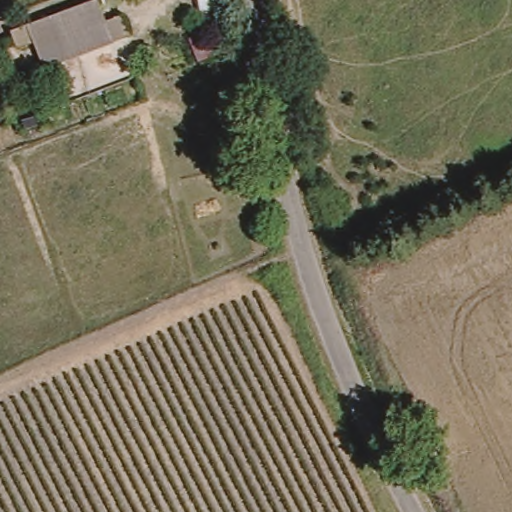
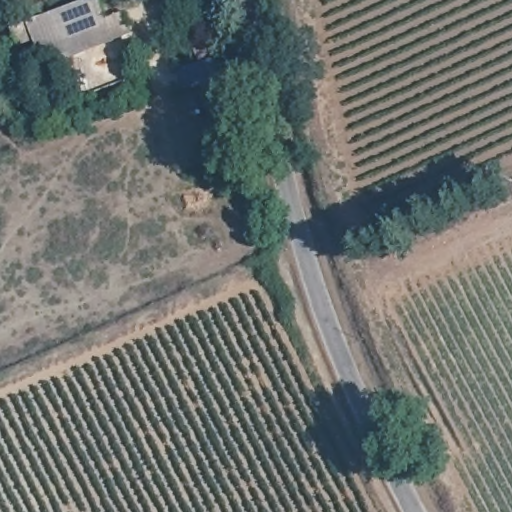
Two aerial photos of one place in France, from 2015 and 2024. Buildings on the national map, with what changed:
unchanged [(106,20),(122,14),(130,34),(114,40),(115,41),(45,68),(28,23),(90,0),(98,0),(106,20)]

